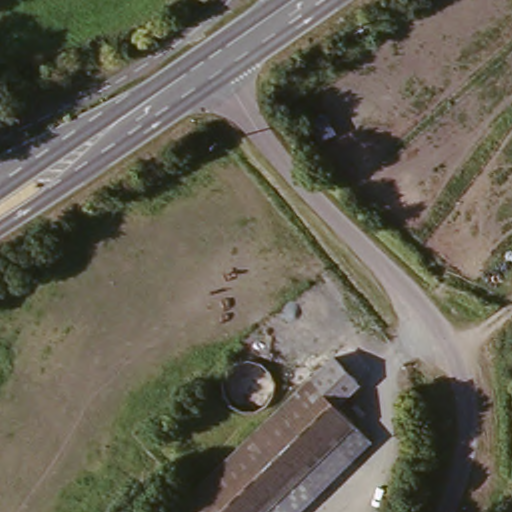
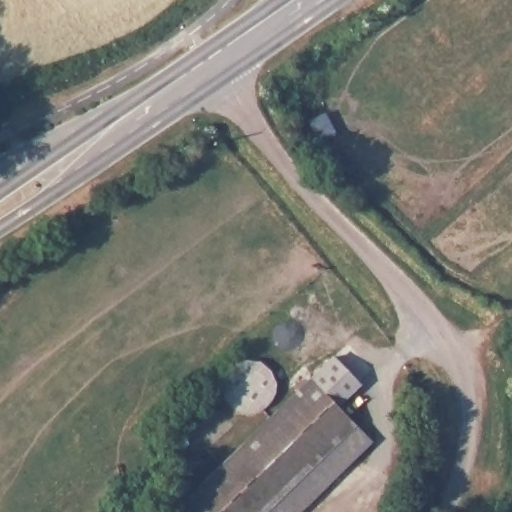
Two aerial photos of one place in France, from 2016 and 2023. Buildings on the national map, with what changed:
unchanged [(333,354),(357,380),(342,395),(343,397),(336,405),(371,441),(297,512),(171,512),(222,462),(333,354)]

